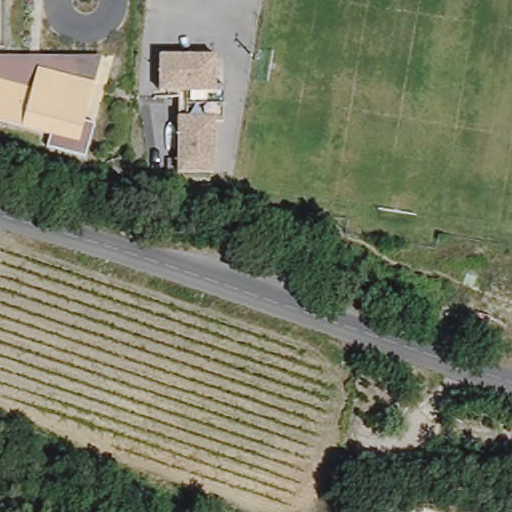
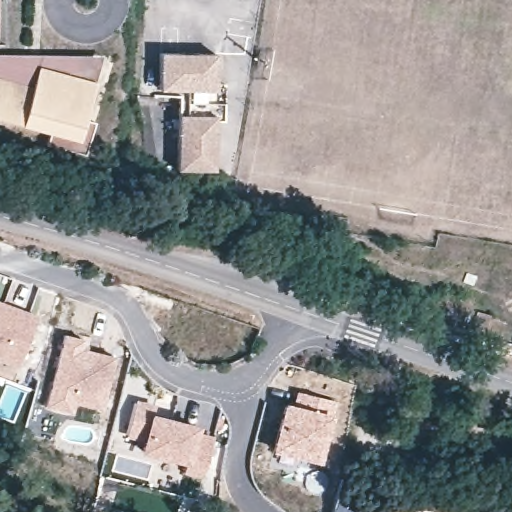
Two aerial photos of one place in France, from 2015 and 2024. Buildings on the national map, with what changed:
unchanged [(87,155),(46,144),(50,127),(0,114),(0,50),(105,53),(88,119),(97,120),(87,155)]
unchanged [(219,132),(212,179),(178,172),(190,86),(172,85),(177,53),(228,60),(225,90),(233,91),(227,134),(219,132)]
new [(37,320),(35,325),(18,370),(0,363),(0,306),(28,316),(37,320)]
new [(65,335),(83,340),(80,350),(115,357),(102,410),(75,403),(72,414),(47,408),(65,335)]
new [(282,405),(292,406),(294,390),(329,395),(319,456),(275,449),(282,405)]
new [(135,402),(154,407),(152,416),(195,427),(194,434),(213,438),(204,475),(185,470),(187,462),(143,451),(146,440),(127,435),(135,402)]
unchanged [(360,507),(369,512),(357,512),(360,507)]

